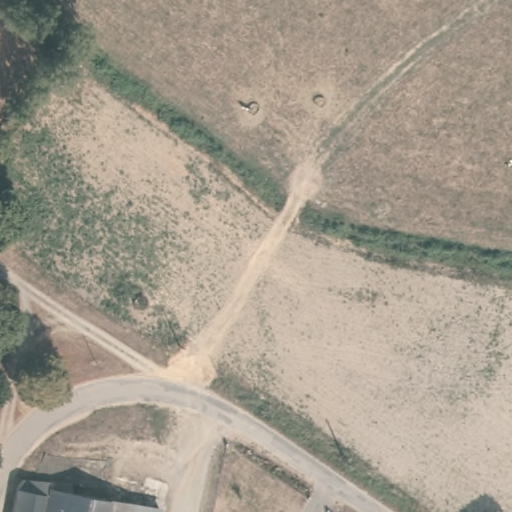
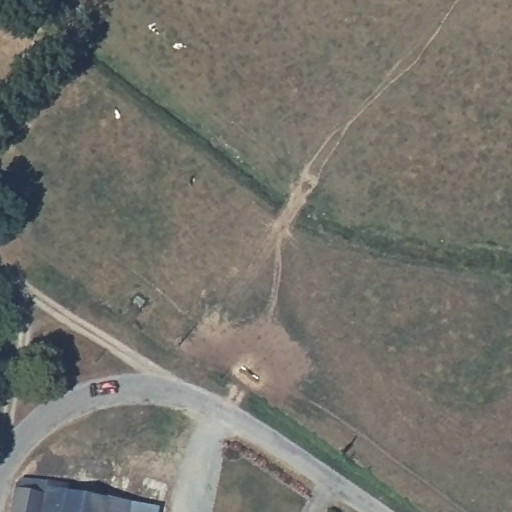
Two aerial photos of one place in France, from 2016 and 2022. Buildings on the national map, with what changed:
unchanged [(15,492),(26,477),(77,487),(76,496),(72,512),(11,512),(15,492)]
unchanged [(151,512),(72,512),(76,496),(151,512)]

